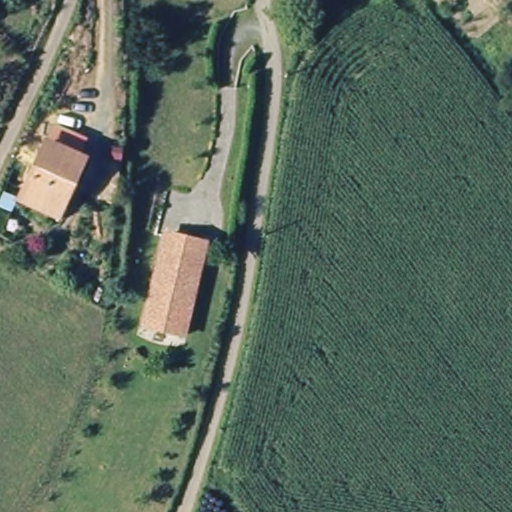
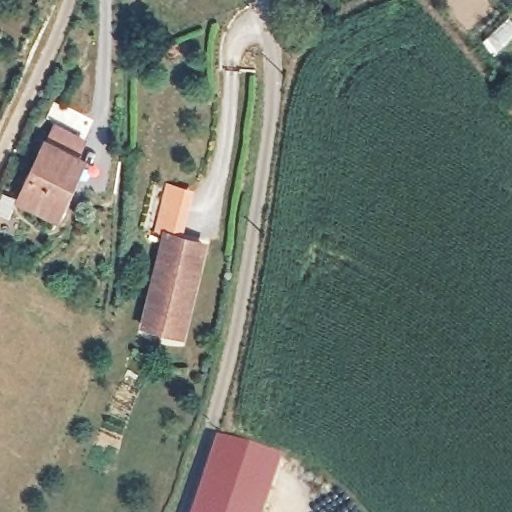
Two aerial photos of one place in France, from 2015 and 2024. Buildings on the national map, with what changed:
unchanged [(23,214),(27,205),(57,139),(83,150),(76,165),(84,169),(61,218),(57,227),(23,214)]
unchanged [(145,329),(145,324),(161,236),(199,242),(183,330),(182,335),(145,329)]
new [(269,512),(196,512),(220,438),(286,459),(269,512)]

